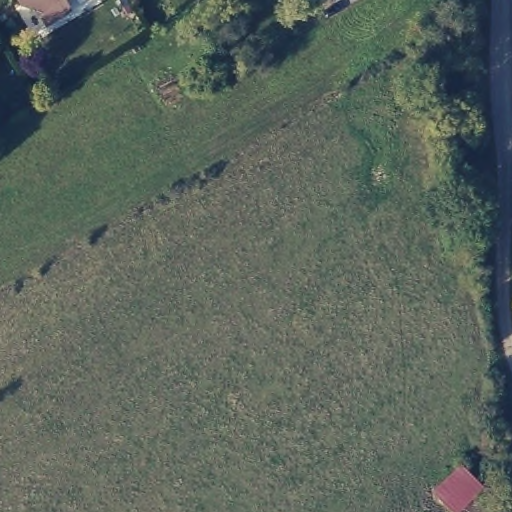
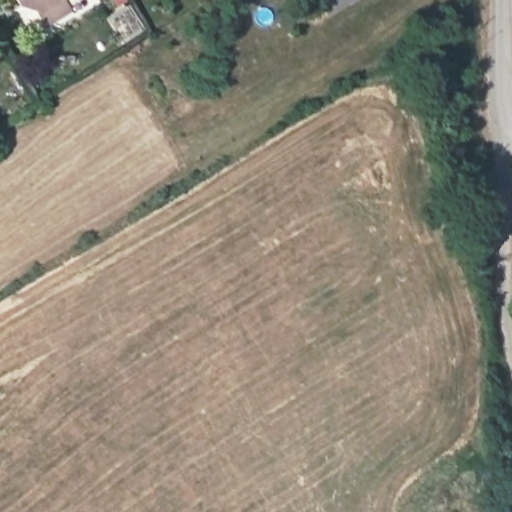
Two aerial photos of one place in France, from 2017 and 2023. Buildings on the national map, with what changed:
unchanged [(72,9),(49,24),(39,6),(37,7),(24,4),(21,0),(67,0),(72,9)]
demolished [(486,494),(464,512),(452,512),(437,493),(463,466),(486,494)]

